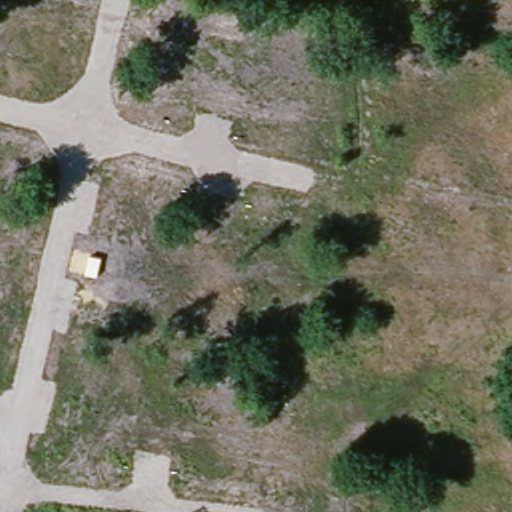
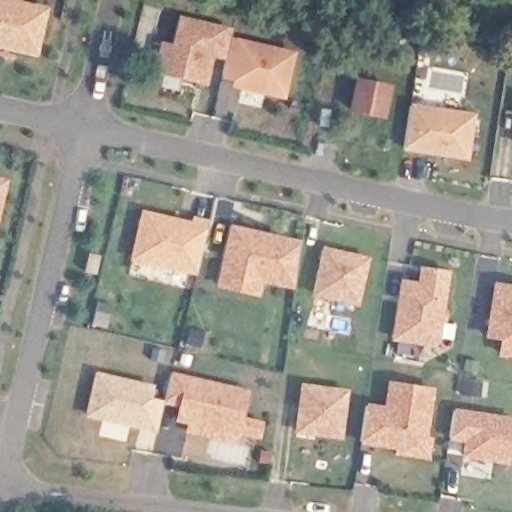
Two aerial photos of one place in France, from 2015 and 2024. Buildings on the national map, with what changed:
new [(38,56),(0,47),(0,0),(15,0),(49,7),(38,56)]
unchanged [(191,79),(156,71),(162,45),(173,48),(180,19),(232,31),(230,39),(226,56),(211,53),(207,71),(204,81),(191,79)]
unchanged [(226,56),(230,39),(292,54),(282,96),(242,86),(243,81),(221,76),(226,56)]
new [(358,79),(389,87),(384,118),(352,111),(358,79)]
new [(476,114),(468,161),(403,151),(411,104),(476,114)]
new [(9,180),(0,217),(0,177),(9,180)]
new [(190,221),(192,216),(207,220),(194,276),(129,260),(141,210),(190,221)]
new [(298,241),(293,290),(263,283),(259,297),(216,288),(230,225),(298,241)]
new [(371,257),(359,307),(310,296),(323,246),(371,257)]
new [(417,280),(419,265),(451,269),(441,338),(428,347),(392,341),(400,278),(417,280)]
new [(512,358),(497,355),(499,341),(484,338),(493,282),(512,285),(512,358)]
new [(155,384),(152,398),(165,402),(164,406),(158,434),(84,417),(95,370),(155,384)]
new [(179,409),(164,406),(165,402),(171,372),(250,390),(240,436),(176,422),(179,409)]
new [(388,379),(436,386),(428,435),(434,437),(431,457),(360,446),(366,402),(385,405),(388,379)]
new [(349,389),(343,440),(295,434),(300,383),(349,389)]
new [(512,453),(510,465),(460,457),(463,442),(448,440),(454,408),(512,416),(512,453)]

